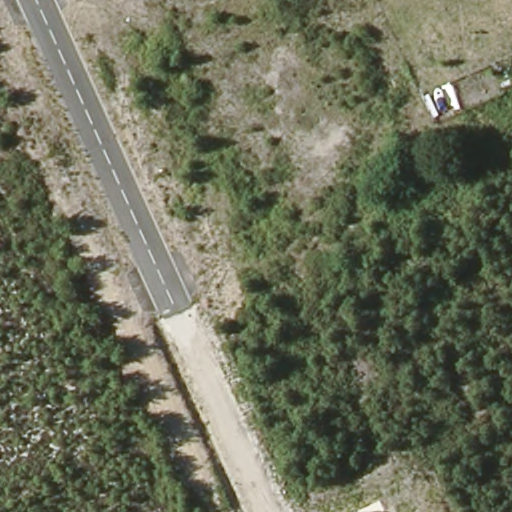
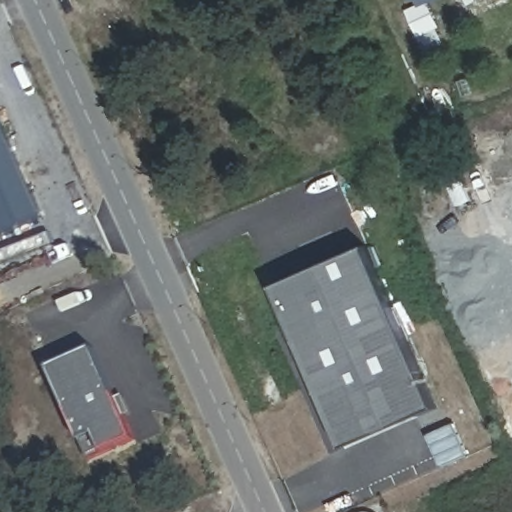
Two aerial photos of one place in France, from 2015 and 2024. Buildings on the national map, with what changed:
new [(431,4),(441,28),(418,38),(407,11),(420,5),(417,0),(440,0),(431,4)]
new [(0,230),(0,124),(40,211),(0,230)]
new [(344,448),(274,287),(366,245),(437,408),(344,448)]
new [(51,368),(94,350),(134,439),(104,452),(90,459),(83,441),(51,368)]

